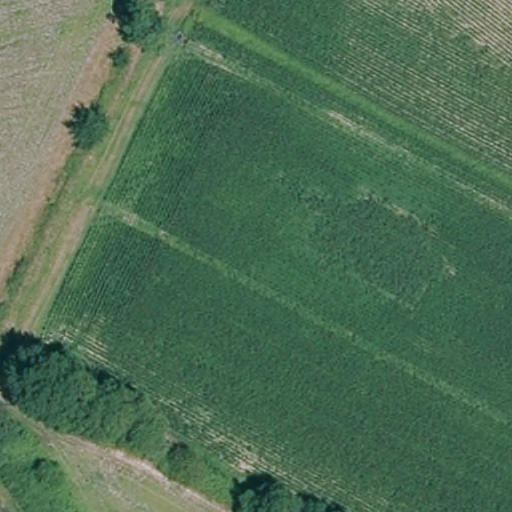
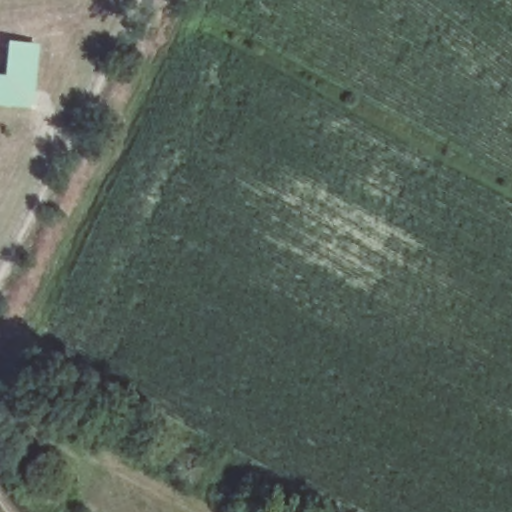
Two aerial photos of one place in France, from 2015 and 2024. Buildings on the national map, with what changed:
new [(5,75),(8,41),(41,44),(35,110),(0,107),(0,75),(5,75)]

